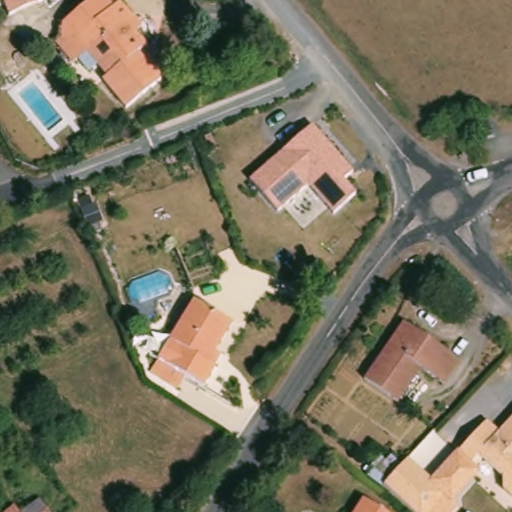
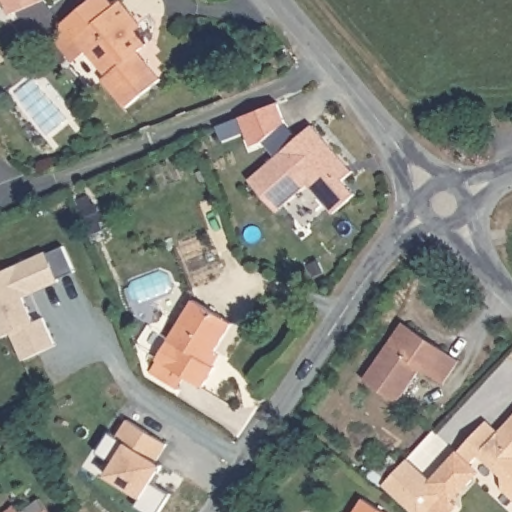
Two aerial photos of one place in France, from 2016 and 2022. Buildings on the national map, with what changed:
unchanged [(2,0),(42,0),(8,15),(2,0)]
unchanged [(65,20),(87,0),(113,0),(117,5),(122,0),(142,24),(137,29),(148,41),(138,49),(163,77),(125,109),(100,80),(108,74),(86,47),(75,57),(59,37),(66,32),(65,20)]
unchanged [(357,171),(348,180),(357,194),(335,214),(311,185),(280,212),(250,181),(316,125),(357,171)]
new [(2,280),(47,258),(48,261),(65,252),(77,277),(60,286),(61,287),(26,304),(35,325),(44,320),(57,347),(26,363),(13,336),(4,341),(0,333),(0,276),(2,280)]
unchanged [(154,373),(161,361),(154,357),(167,336),(174,341),(197,301),(236,325),(212,364),(219,368),(206,390),(189,378),(182,391),(154,373)]
unchanged [(428,336),(407,371),(379,353),(384,347),(389,351),(407,322),(428,336)]
unchanged [(400,402),(364,377),(379,353),(407,371),(428,336),(450,350),(461,357),(446,381),(434,372),(424,366),(400,402)]
unchanged [(512,419),(512,491),(510,489),(510,476),(485,454),(476,465),(462,453),(490,421),(502,431),(512,419)]
new [(117,441),(128,424),(167,448),(156,466),(162,470),(152,486),(171,498),(162,512),(137,512),(135,511),(141,502),(106,480),(114,467),(97,457),(110,437),(117,441)]
unchanged [(476,465),(483,473),(455,502),(459,506),(452,512),(422,512),(443,490),(433,482),(462,453),(476,465)]
unchanged [(433,482),(443,490),(422,512),(417,512),(383,484),(405,457),(433,482)]
unchanged [(29,500),(35,495),(48,512),(22,512),(32,505),(29,500)]
unchanged [(356,512),(363,500),(383,512),(356,512)]
unchanged [(17,512),(6,512),(13,506),(17,512)]

